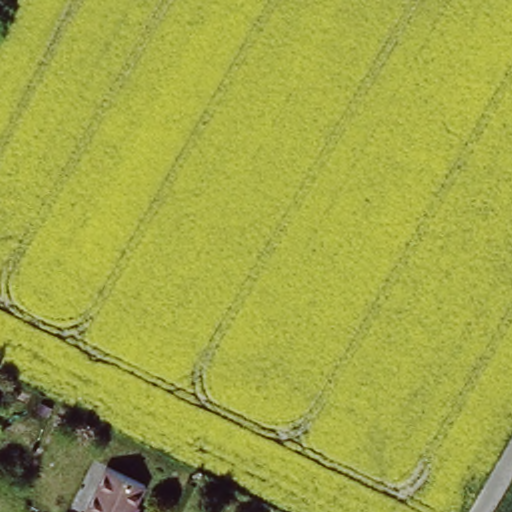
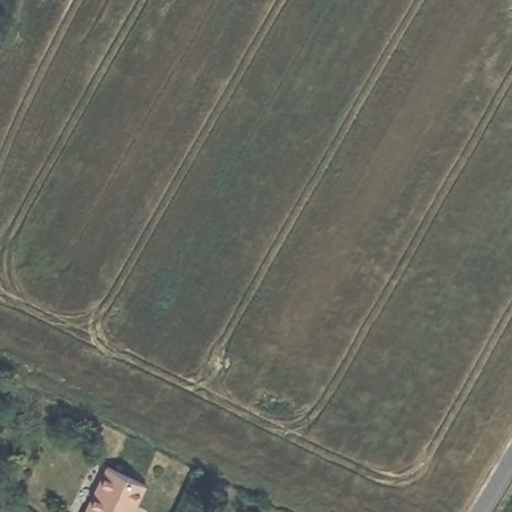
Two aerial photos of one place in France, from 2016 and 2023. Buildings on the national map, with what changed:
unchanged [(150,485),(136,512),(90,512),(112,467),(150,485)]

